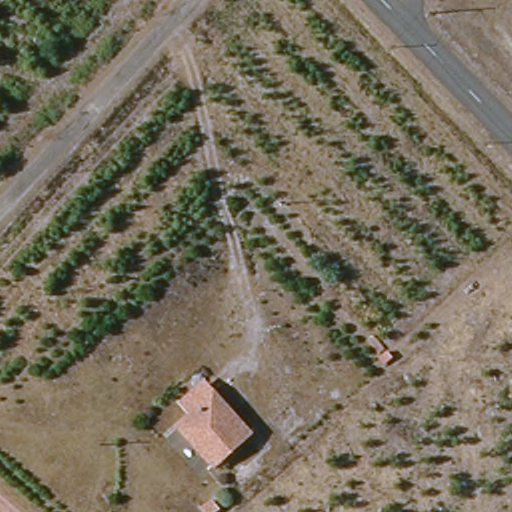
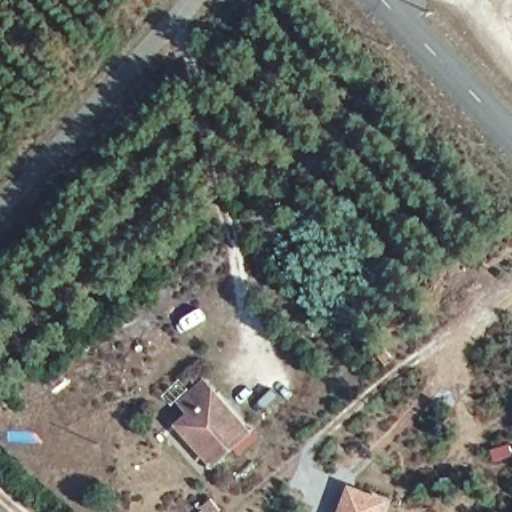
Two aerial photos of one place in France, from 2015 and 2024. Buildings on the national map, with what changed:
unchanged [(174,427),(182,418),(173,406),(198,385),(208,396),(228,420),(241,438),(207,468),(174,427)]
new [(386,512),(339,512),(349,486),(390,501),(386,512)]

